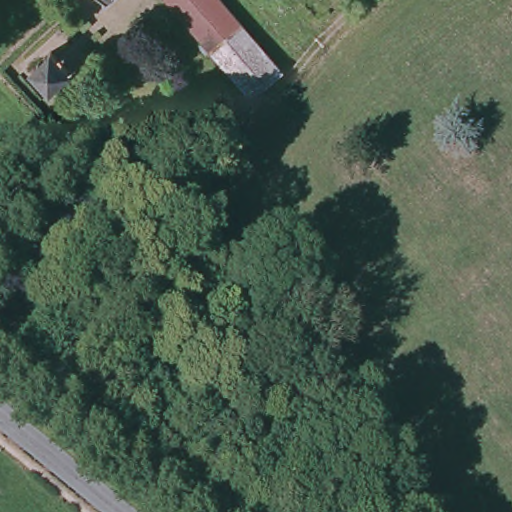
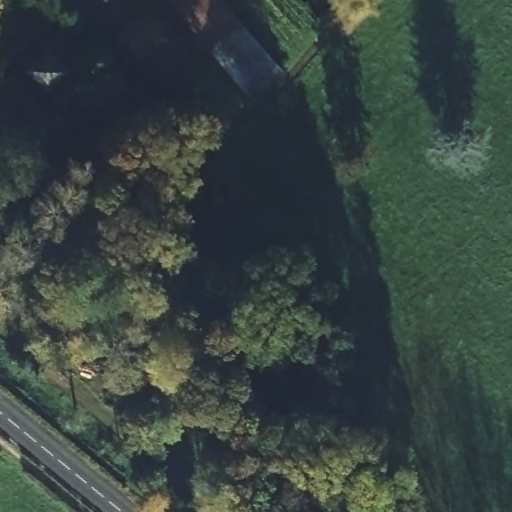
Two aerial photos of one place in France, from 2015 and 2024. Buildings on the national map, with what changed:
unchanged [(280,64),(250,92),(164,0),(219,0),(280,64)]
unchanged [(50,50),(70,70),(48,90),(29,70),(50,50)]

